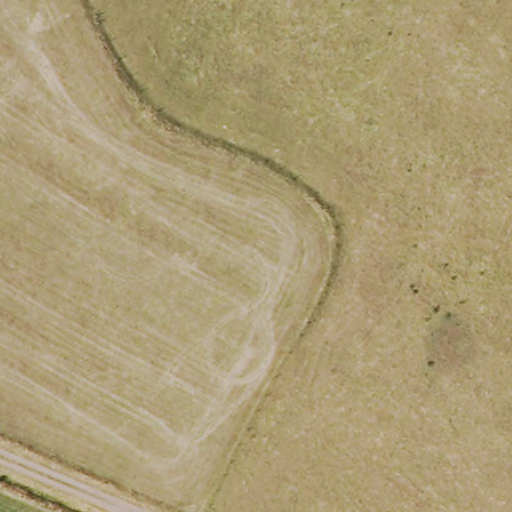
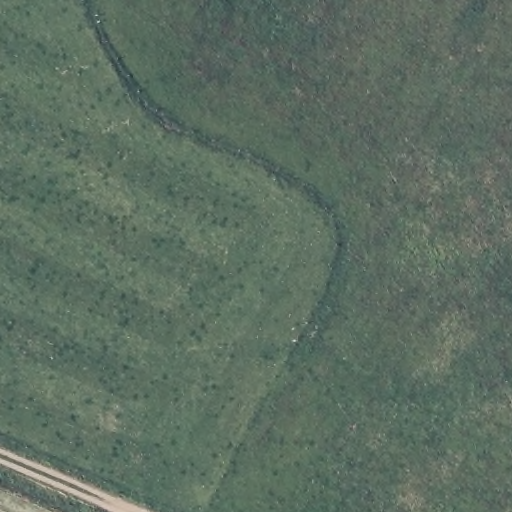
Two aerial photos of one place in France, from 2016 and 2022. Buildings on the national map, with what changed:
[]

